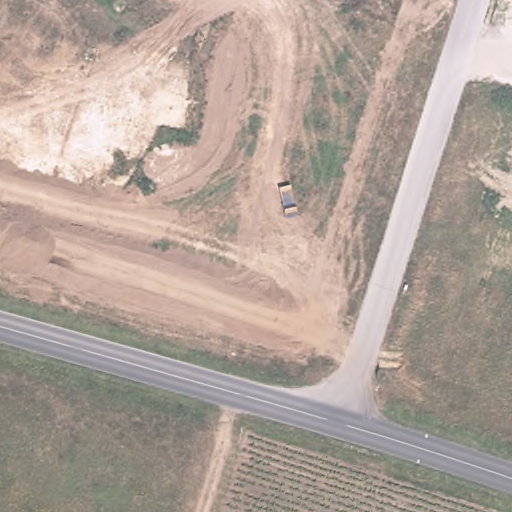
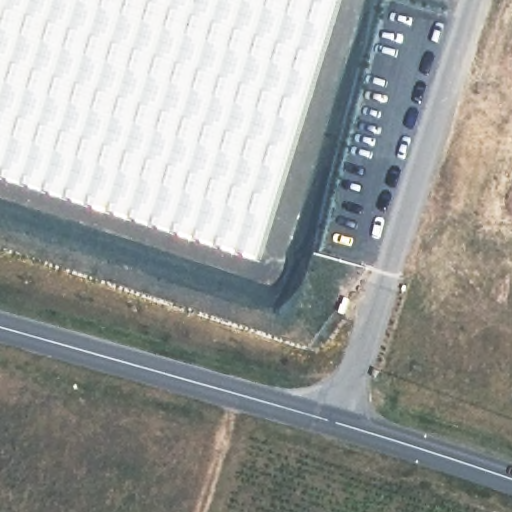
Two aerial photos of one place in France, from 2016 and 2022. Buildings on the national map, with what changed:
new [(0,177),(0,0),(339,0),(258,259),(0,177)]

